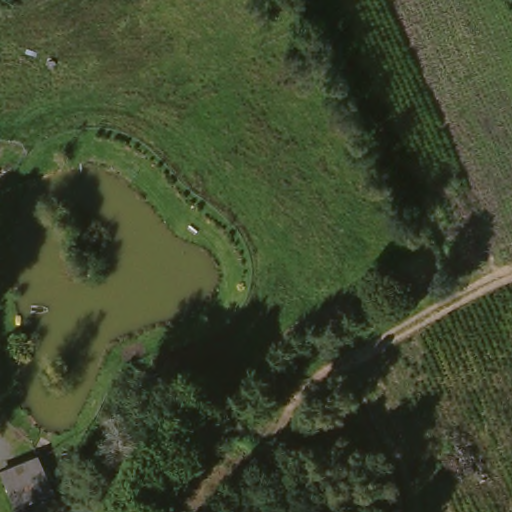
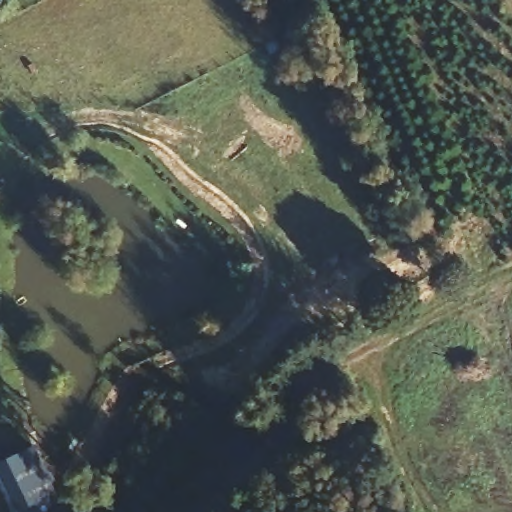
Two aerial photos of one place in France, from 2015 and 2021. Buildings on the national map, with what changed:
unchanged [(38,512),(22,512),(6,473),(41,457),(61,502),(38,512)]

